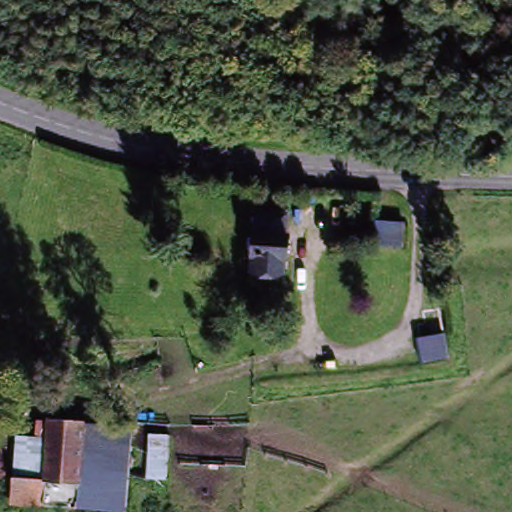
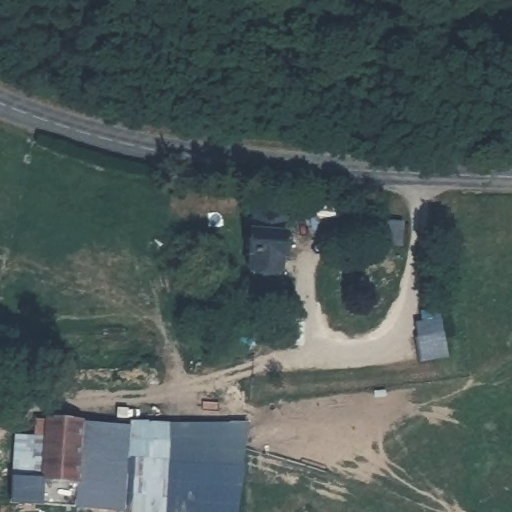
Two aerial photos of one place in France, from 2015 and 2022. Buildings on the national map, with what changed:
unchanged [(283,282),(251,279),(256,220),(286,223),(283,282)]
unchanged [(376,224),(402,227),(401,241),(374,239),(376,224)]
new [(125,424),(129,424),(129,418),(196,424),(194,463),(246,468),(242,512),(120,512),(125,431),(125,424)]
unchanged [(42,429),(43,425),(76,428),(72,512),(62,512),(39,509),(5,506),(6,496),(7,481),(38,484),(41,442),(30,441),(32,427),(42,429)]
unchanged [(76,428),(125,431),(120,512),(72,512),(76,428)]

